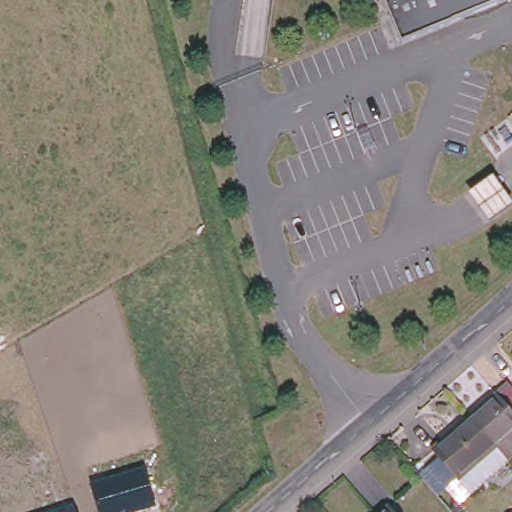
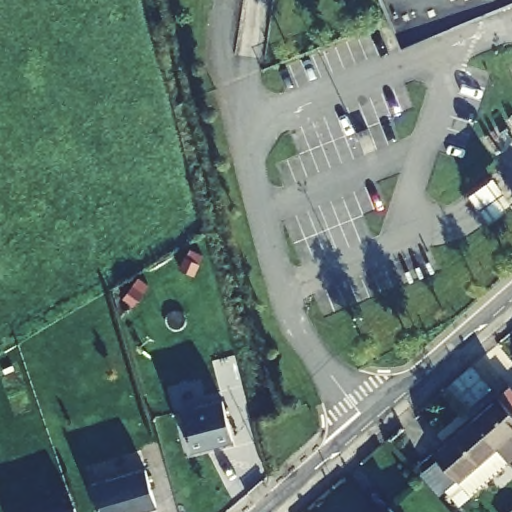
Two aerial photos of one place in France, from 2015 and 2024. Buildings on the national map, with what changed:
unchanged [(402,50),(381,0),(512,0),(512,5),(402,50)]
unchanged [(359,108),(360,107),(367,126),(375,146),(369,149),(364,150),(357,130),(350,111),(359,108)]
unchanged [(494,174),(512,199),(512,204),(489,221),(469,192),(494,174)]
new [(181,409),(223,399),(234,441),(192,451),(181,409)]
unchanged [(496,401),(505,410),(512,404),(512,436),(494,452),(470,423),(496,401)]
unchanged [(456,483),(432,456),(470,423),(494,452),(456,483)]
unchanged [(155,509),(142,512),(98,512),(91,485),(145,470),(155,509)]
unchanged [(77,512),(50,512),(75,505),(77,512)]
unchanged [(401,512),(396,512),(399,510),(401,512)]

